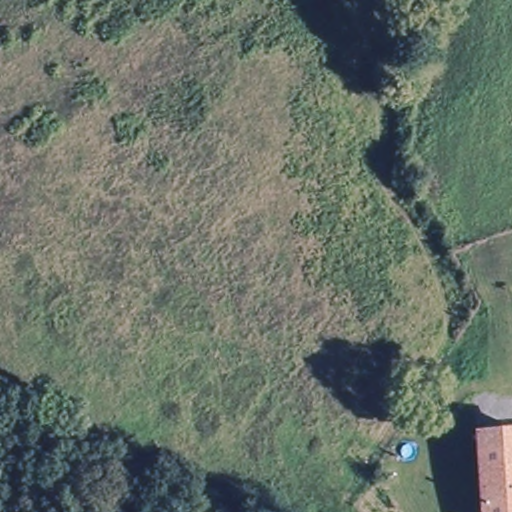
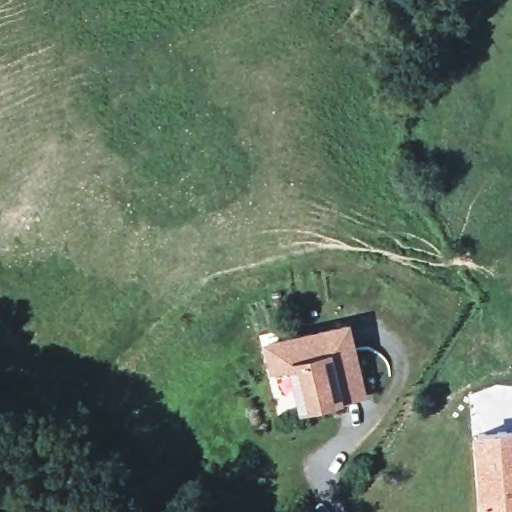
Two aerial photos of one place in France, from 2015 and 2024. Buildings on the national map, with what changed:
new [(365,394),(300,408),(290,363),(270,368),(263,339),(349,321),(365,394)]
unchanged [(512,431),(512,512),(484,512),(477,433),(512,431)]

